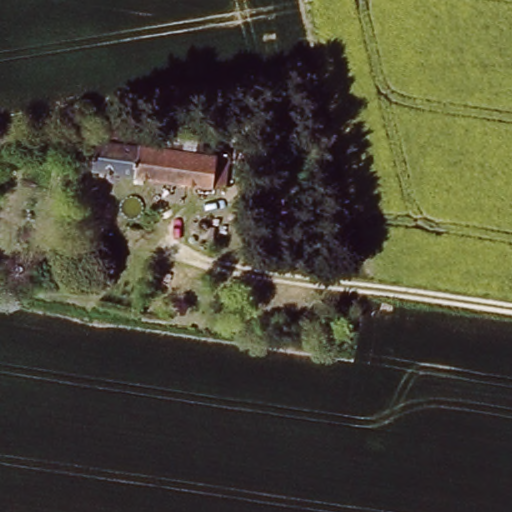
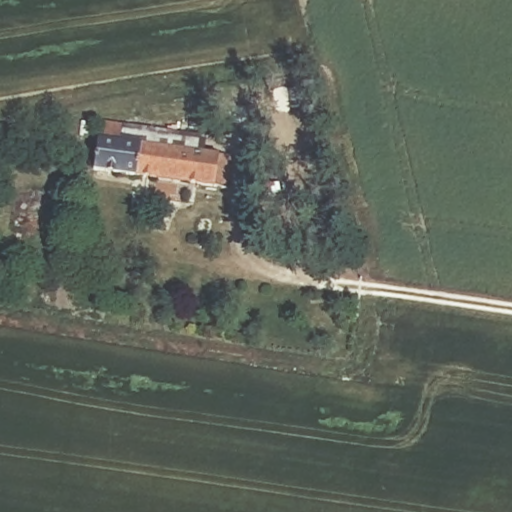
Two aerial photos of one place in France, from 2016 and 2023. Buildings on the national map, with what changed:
unchanged [(125,121),(122,139),(217,151),(218,145),(232,147),(227,185),(93,165),(99,118),(125,121)]
unchanged [(247,187),(245,211),(231,209),(233,186),(247,187)]

